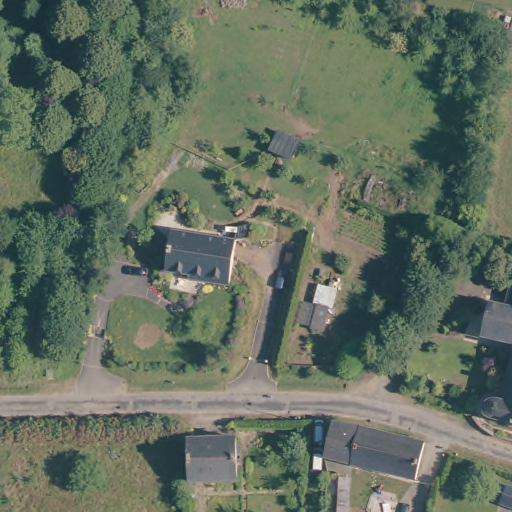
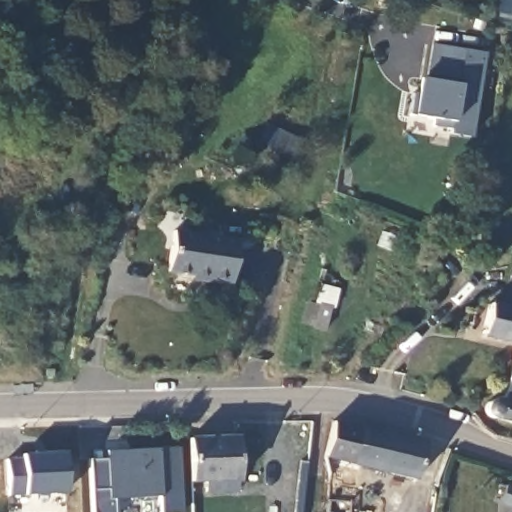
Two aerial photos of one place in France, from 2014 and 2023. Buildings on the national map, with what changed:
new [(512,0),(510,7),(497,4),(497,0),(512,0)]
new [(484,54),(470,138),(447,135),(448,129),(430,127),(432,119),(411,116),(417,79),(426,80),(432,45),(484,54)]
unchanged [(237,236),(234,281),(210,279),(211,273),(171,270),(174,231),(237,236)]
unchanged [(486,332),(491,301),(512,304),(512,336),(486,332)]
unchanged [(496,417),(497,410),(496,408),(492,406),(490,402),(490,398),(492,395),(496,392),(501,391),(511,392),(512,387),(512,384),(512,420),(496,417)]
unchanged [(427,446),(417,478),(327,457),(327,455),(332,423),(427,446)]
unchanged [(238,434),(239,477),(191,477),(190,433),(238,434)]
new [(122,512),(98,512),(96,486),(95,456),(112,455),(111,447),(136,446),(184,443),(187,509),(165,510),(164,492),(147,493),(132,494),(121,495),(122,512)]
new [(27,456),(27,452),(69,450),(71,490),(13,492),(12,457),(27,456)]
unchanged [(332,483),(353,483),(353,512),(331,512),(332,483)]

